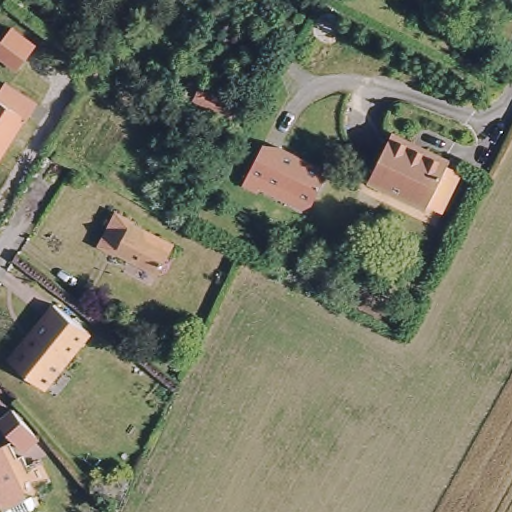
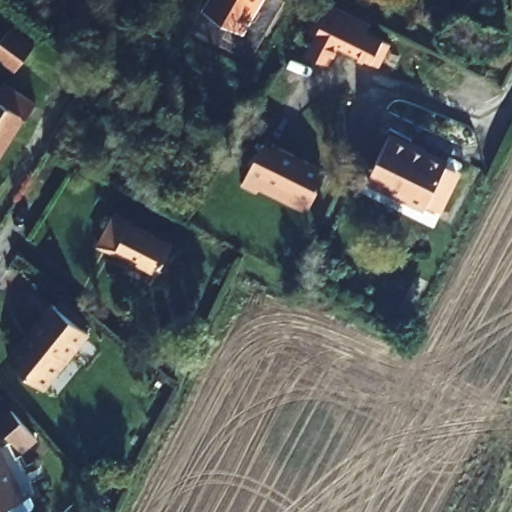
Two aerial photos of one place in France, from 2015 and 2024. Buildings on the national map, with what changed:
new [(202,10),(207,0),(265,0),(245,36),(202,10)]
new [(367,30),(383,40),(392,44),(378,69),(370,64),(338,48),(329,67),(305,54),(330,4),(370,24),(367,30)]
unchanged [(13,69),(0,60),(0,37),(7,28),(31,45),(13,69)]
unchanged [(227,119),(191,99),(202,79),(237,95),(227,119)]
unchanged [(33,104),(25,118),(22,116),(0,151),(0,84),(0,83),(33,104)]
unchanged [(440,176),(451,182),(433,217),(422,211),(419,217),(358,186),(384,136),(445,167),(440,176)]
unchanged [(277,151),(279,147),(323,169),(327,179),(313,206),(265,183),(260,193),(243,184),(262,144),(277,151)]
unchanged [(105,205),(125,214),(123,218),(165,238),(147,273),(107,252),(87,242),(105,205)]
unchanged [(82,328),(38,386),(4,357),(47,299),(82,328)]
unchanged [(0,432),(0,412),(5,408),(27,436),(12,448),(0,432)]
unchanged [(9,512),(0,512),(0,472),(14,510),(9,512)]

